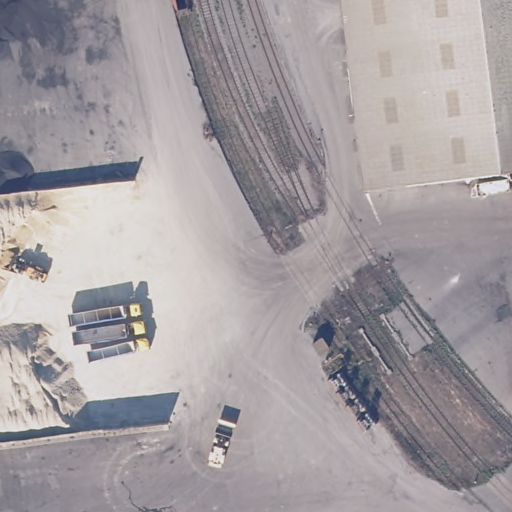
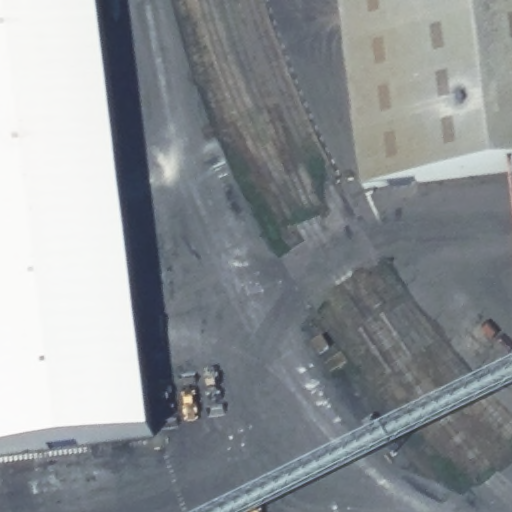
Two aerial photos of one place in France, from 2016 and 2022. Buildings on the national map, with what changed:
new [(0,456),(0,0),(105,0),(158,438),(0,456)]
unchanged [(342,0),(512,0),(512,169),(364,187),(342,0)]

